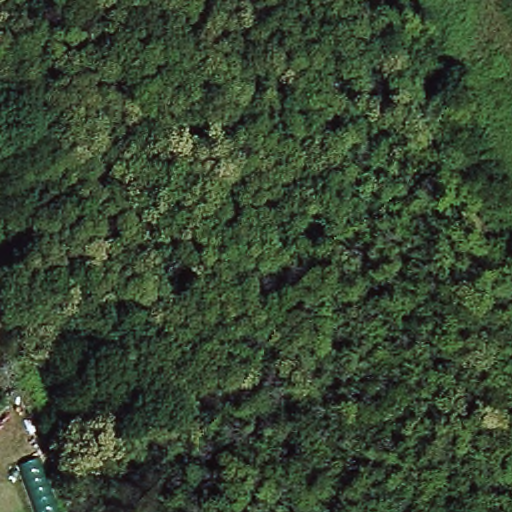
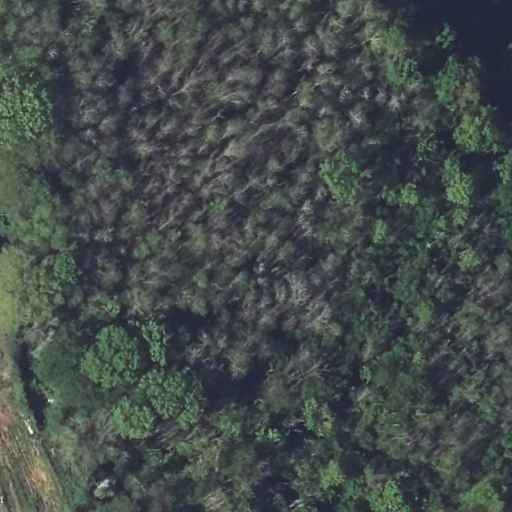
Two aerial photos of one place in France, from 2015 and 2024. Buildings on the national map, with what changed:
[]

